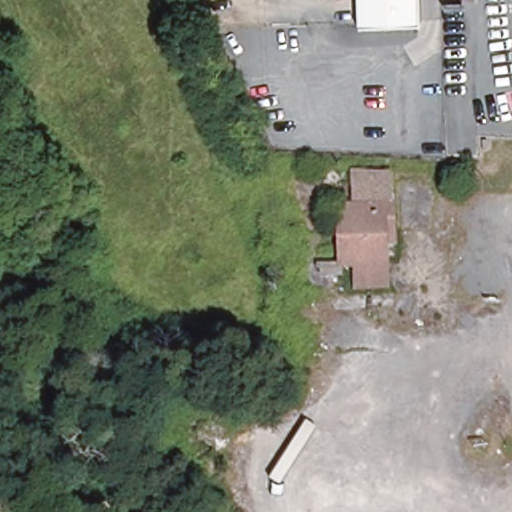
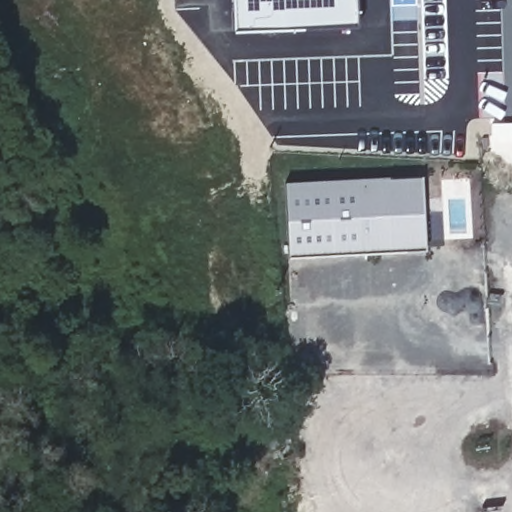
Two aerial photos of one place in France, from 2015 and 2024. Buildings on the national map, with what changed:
new [(232,31),(231,0),(356,0),(357,26),(232,31)]
unchanged [(357,26),(357,0),(418,0),(419,26),(357,26)]
new [(421,176),(424,251),(291,258),(285,183),(421,176)]
demolished [(335,200),(371,198),(387,197),(388,236),(382,236),(383,274),(374,274),(343,272),(335,200)]

